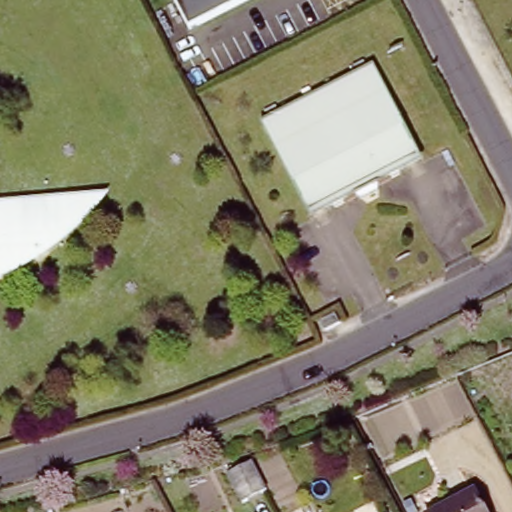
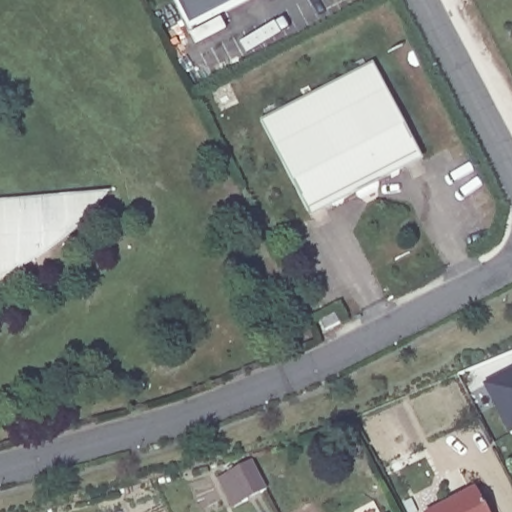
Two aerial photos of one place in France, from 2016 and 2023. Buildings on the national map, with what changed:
unchanged [(176,0),(245,0),(191,29),(176,0)]
unchanged [(309,216),(265,129),(263,124),(269,121),(266,114),(275,109),(279,117),(335,89),(357,78),(354,70),(364,65),(367,73),(375,69),(377,73),(421,160),(425,167),(401,179),(380,189),(380,190),(379,197),(362,204),(357,201),(337,211),(312,223),(309,216)]
unchanged [(107,194),(105,198),(96,208),(88,215),(79,224),(68,234),(60,242),(51,249),(47,205),(0,208),(0,198),(20,197),(108,192),(107,194)]
unchanged [(51,249),(46,252),(34,259),(18,267),(14,269),(1,274),(0,275),(0,208),(47,205),(51,249)]
unchanged [(339,311),(344,321),(330,328),(325,318),(339,311)]
new [(512,371),(512,434),(511,434),(485,386),(512,371)]
unchanged [(254,466),(269,494),(244,508),(229,479),(254,466)]
unchanged [(472,493),(482,512),(434,512),(472,493)]

